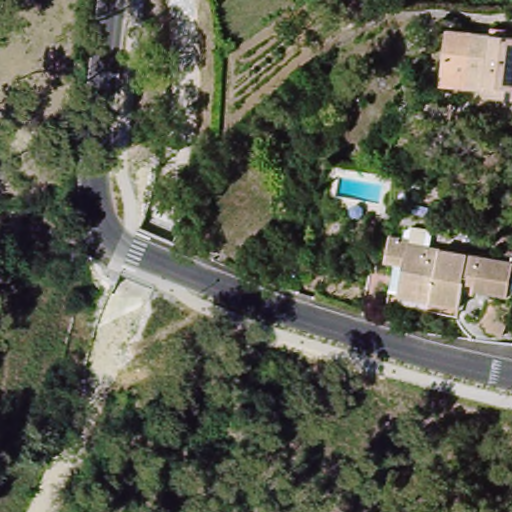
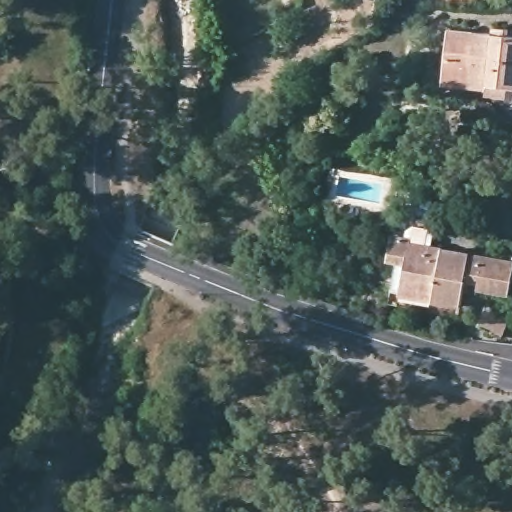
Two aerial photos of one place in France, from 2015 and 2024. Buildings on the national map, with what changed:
unchanged [(485,88),(442,83),(450,29),(492,35),(493,26),(510,28),(508,37),(512,37),(512,100),(485,96),(485,88)]
unchanged [(477,294),(463,291),(460,306),(400,295),(404,264),(386,261),(392,235),(412,238),(410,243),(502,260),(505,252),(512,254),(512,291),(511,296),(478,289),(477,294)]
unchanged [(490,297),(512,306),(512,312),(502,335),(479,326),(490,297)]

